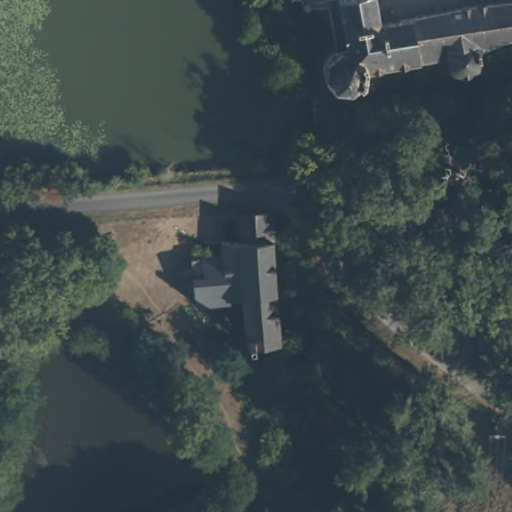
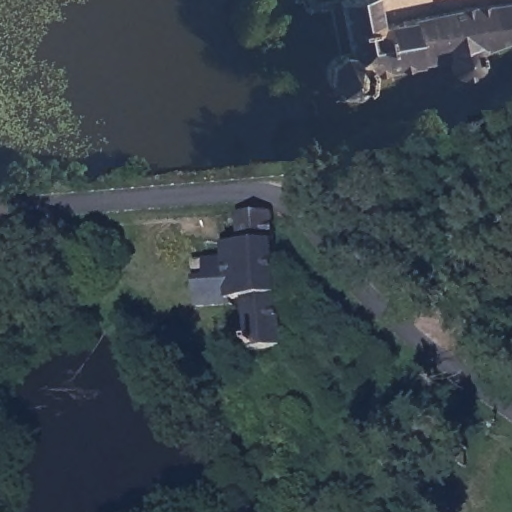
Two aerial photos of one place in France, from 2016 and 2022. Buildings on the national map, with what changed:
unchanged [(475,51),(477,66),(447,71),(443,56),(363,69),(359,81),(347,92),(330,89),(320,80),(319,65),(327,51),(338,50),(342,44),(335,0),(374,0),(377,18),(496,0),(512,0),(512,44),(475,51)]
unchanged [(199,301),(199,254),(226,254),(227,231),(240,231),(240,211),(280,211),(281,237),(284,311),(304,311),(305,333),(286,335),(286,347),(250,348),(249,301),(235,300),(199,301)]

